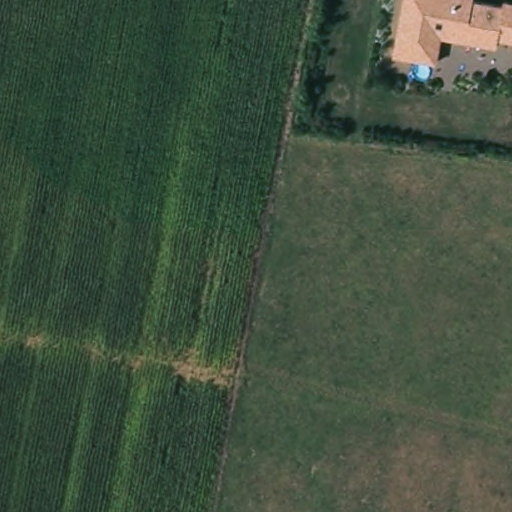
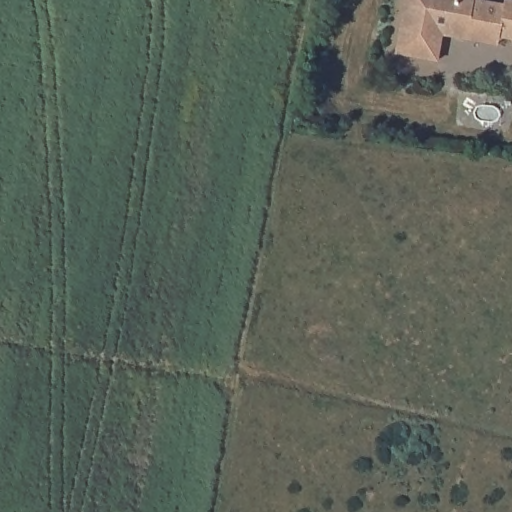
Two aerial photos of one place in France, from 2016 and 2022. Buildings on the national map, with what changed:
unchanged [(503,4),(504,0),(510,0),(512,0),(512,39),(498,36),(497,44),(441,36),(437,60),(394,54),(404,0),(481,0),(503,4)]

